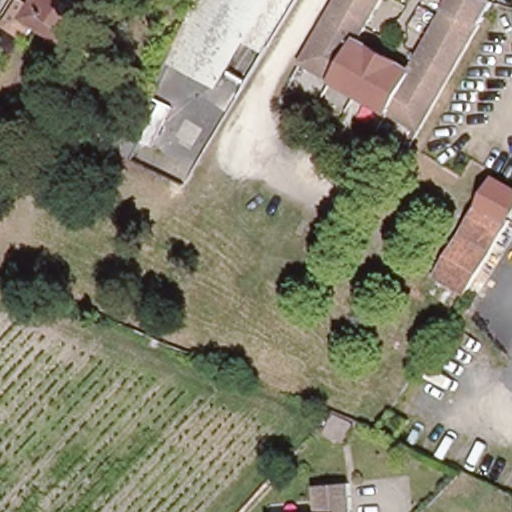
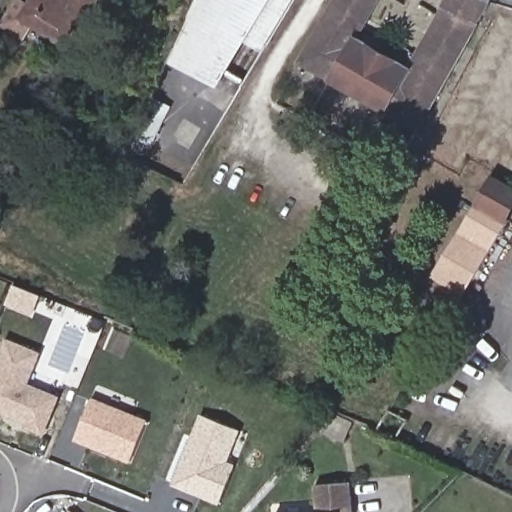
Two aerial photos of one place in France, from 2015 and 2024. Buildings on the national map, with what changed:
unchanged [(0,12),(7,2),(24,12),(32,0),(94,0),(60,51),(28,30),(14,51),(0,42),(0,12)]
unchanged [(216,84),(167,62),(196,0),(270,0),(246,37),(216,84)]
unchanged [(246,37),(270,0),(299,0),(268,49),(246,37)]
unchanged [(406,67),(448,0),(464,0),(494,9),(418,129),(296,67),(338,0),(384,0),(353,44),(406,67)]
unchanged [(143,144),(130,138),(141,115),(155,121),(143,144)]
unchanged [(512,185),(512,210),(464,295),(427,276),(489,174),(512,185)]
demolished [(267,262),(251,253),(268,226),(286,235),(267,262)]
new [(36,352),(23,383),(55,396),(41,431),(24,425),(25,421),(0,411),(0,349),(4,340),(36,352)]
new [(144,419),(128,459),(73,437),(89,397),(144,419)]
demolished [(376,434),(390,412),(407,422),(396,443),(376,434)]
new [(237,430),(223,464),(233,468),(219,502),(174,483),(202,416),(237,430)]
unchanged [(308,482),(344,481),(346,512),(309,512),(308,482)]
new [(71,512),(67,512),(69,510),(71,512)]

